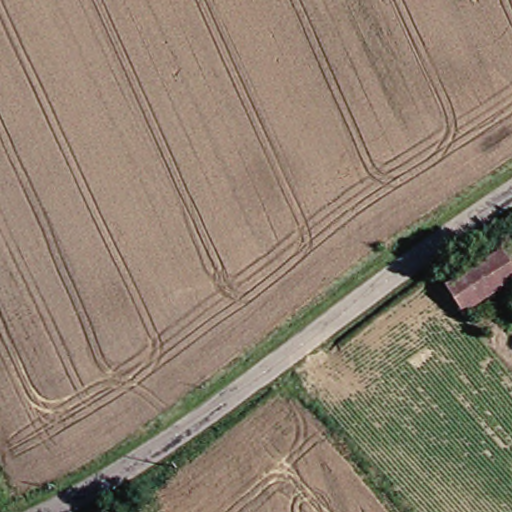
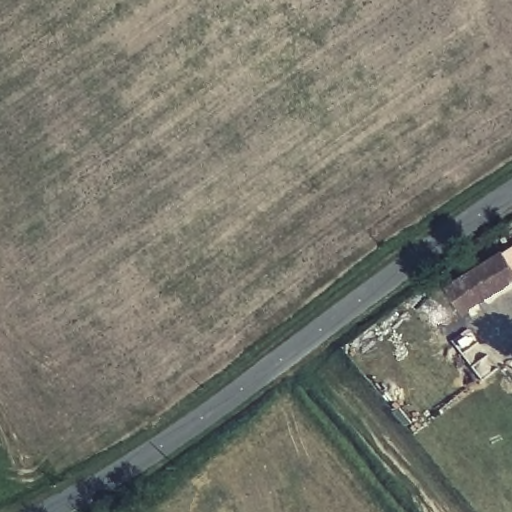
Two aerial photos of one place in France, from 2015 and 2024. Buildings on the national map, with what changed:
unchanged [(496,257),(509,280),(463,313),(460,315),(445,288),(449,286),(496,257)]

